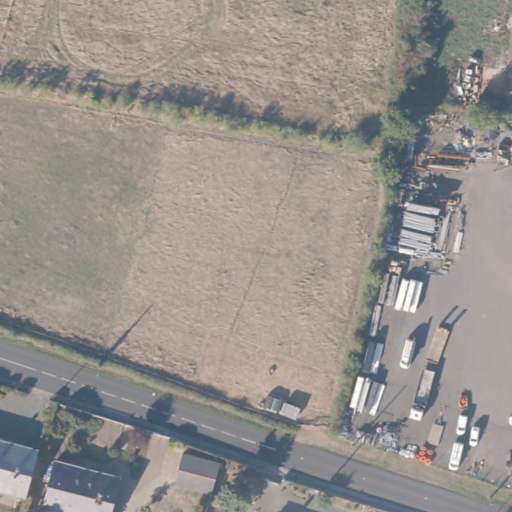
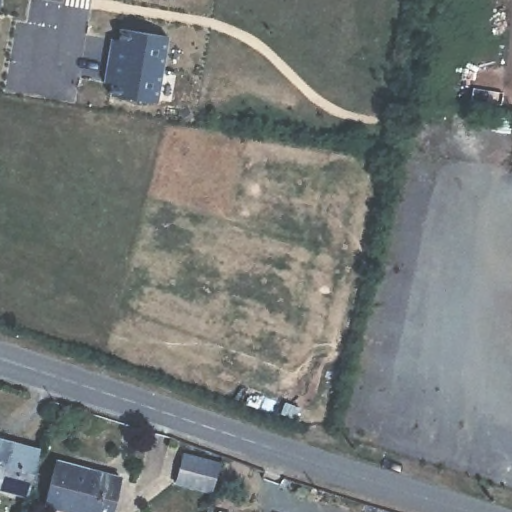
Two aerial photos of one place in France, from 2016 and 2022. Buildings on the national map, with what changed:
new [(111,94),(113,82),(104,81),(111,38),(120,40),(122,27),(168,36),(157,102),(111,94)]
unchanged [(19,497),(0,491),(0,442),(32,450),(19,497)]
unchanged [(220,462),(214,490),(177,482),(183,454),(220,462)]
unchanged [(109,512),(59,512),(46,508),(58,461),(118,478),(109,512)]

